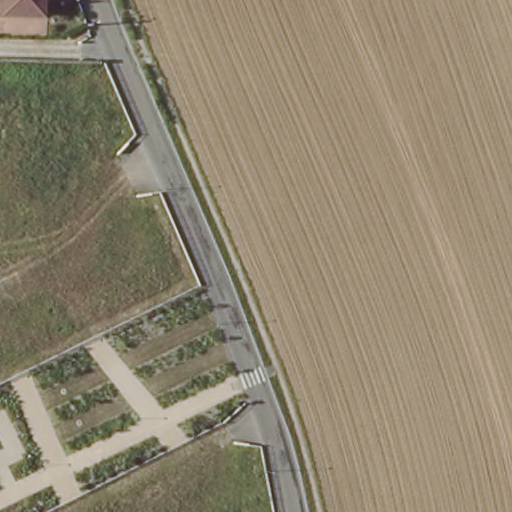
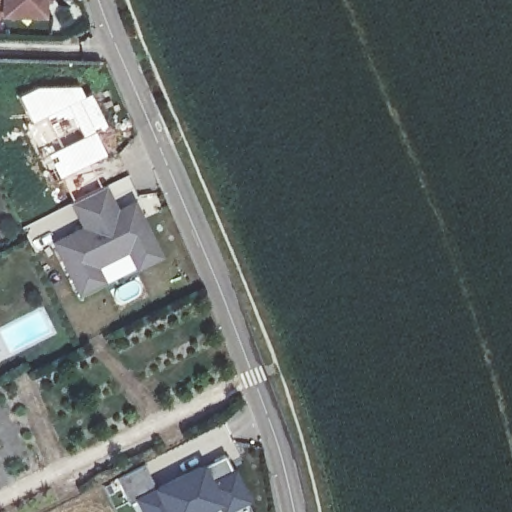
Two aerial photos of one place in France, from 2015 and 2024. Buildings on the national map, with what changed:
unchanged [(42,19),(1,14),(0,14),(0,0),(42,0),(42,19)]
new [(83,228),(70,202),(102,186),(115,212),(122,209),(137,214),(158,256),(136,268),(127,250),(93,266),(100,281),(78,292),(53,243),(83,228)]
new [(128,504),(115,479),(143,466),(156,489),(201,467),(203,472),(217,465),(214,460),(224,455),(247,499),(224,511),(218,502),(199,512),(143,512),(137,500),(128,504)]

